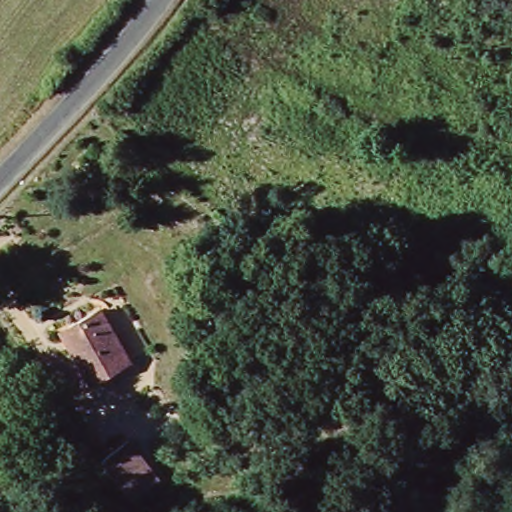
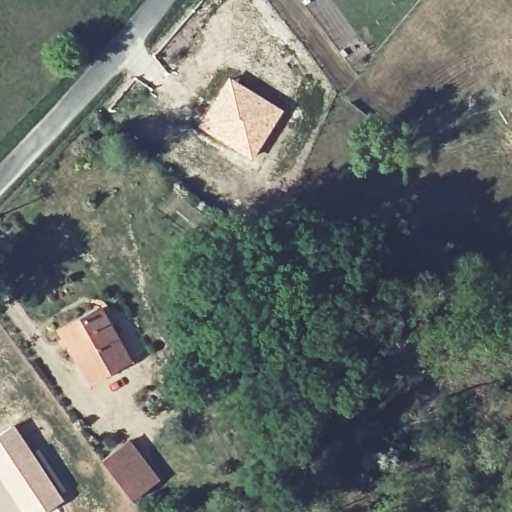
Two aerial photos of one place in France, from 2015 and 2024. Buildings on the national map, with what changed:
new [(229,75),(285,110),(252,160),(196,126),(229,75)]
unchanged [(95,308),(126,361),(91,382),(60,330),(95,308)]
new [(65,500),(55,507),(59,512),(23,512),(0,478),(0,433),(14,424),(65,500)]
unchanged [(95,461),(120,441),(151,482),(125,501),(95,461)]

